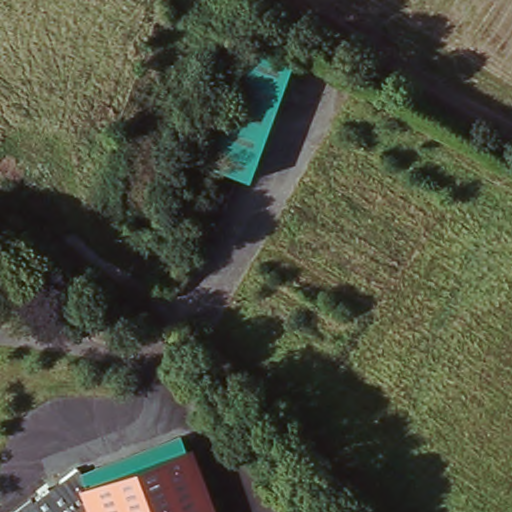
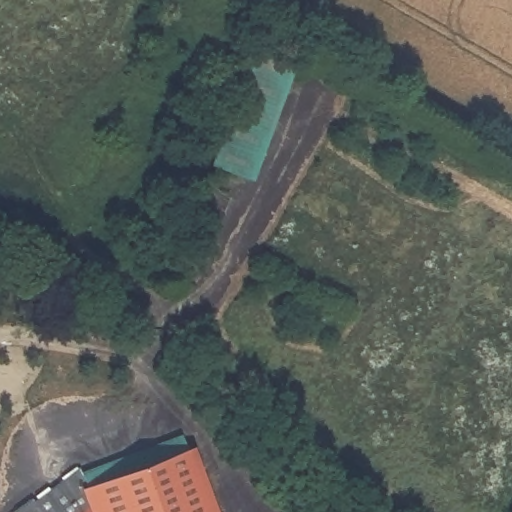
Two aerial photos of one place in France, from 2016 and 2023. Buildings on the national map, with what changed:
unchanged [(288,55),(252,177),(211,166),(247,43),(288,55)]
unchanged [(30,498),(34,503),(76,469),(80,473),(180,433),(186,452),(209,512),(12,512),(30,498)]

